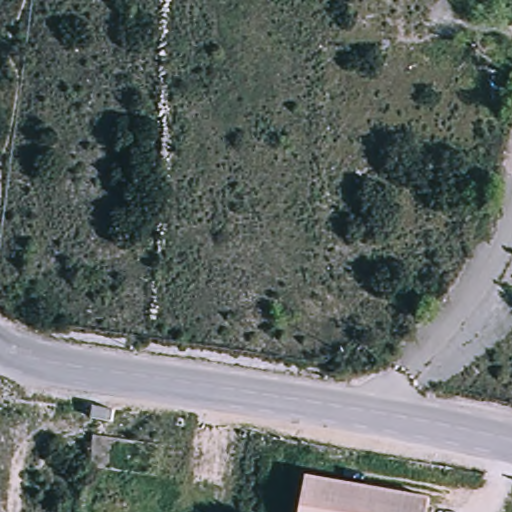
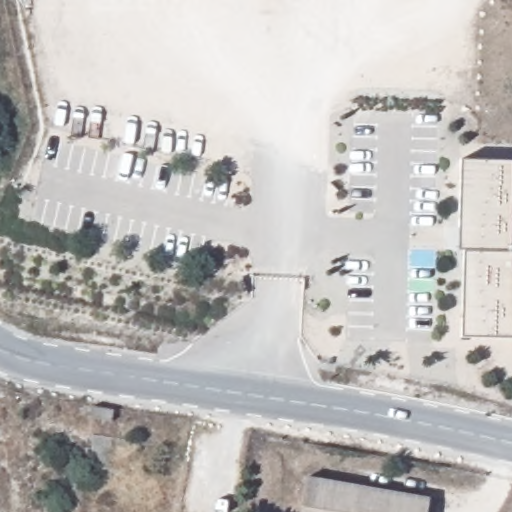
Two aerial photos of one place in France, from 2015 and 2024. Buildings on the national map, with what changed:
new [(510,254),(512,254),(512,338),(463,337),(464,252),(459,252),(462,163),(511,163),(510,254)]
unchanged [(427,512),(300,512),(307,478),(430,501),(427,512)]

